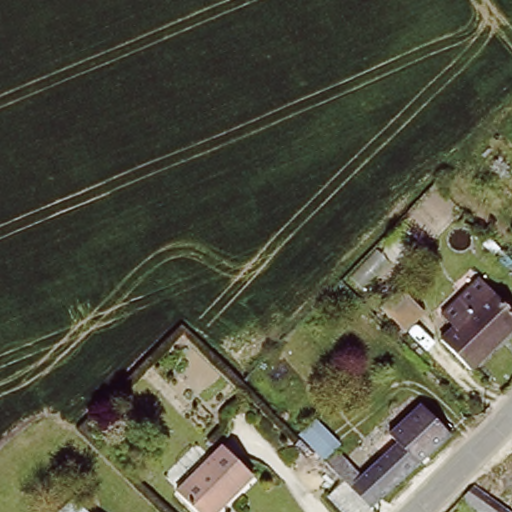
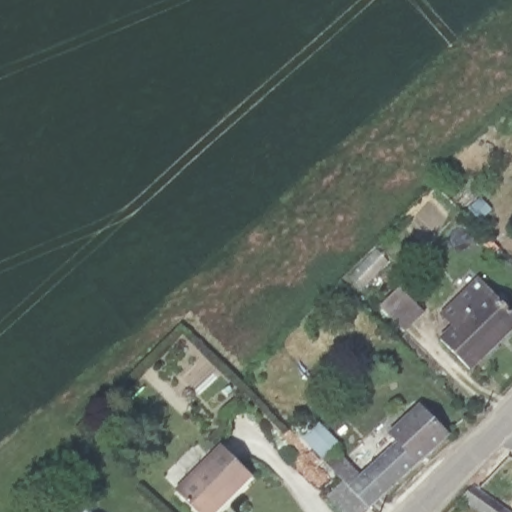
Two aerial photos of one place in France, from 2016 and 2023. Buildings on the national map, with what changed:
unchanged [(468,370),(438,340),(454,322),(439,308),(476,271),(512,307),(512,326),(468,370)]
unchanged [(409,331),(383,305),(404,285),(429,310),(409,331)]
unchanged [(346,483),(328,465),(303,440),(316,426),(341,452),(364,475),(384,455),(374,445),(419,400),(447,430),(373,510),(371,512),(348,512),(334,497),(346,483)]
unchanged [(216,512),(200,512),(178,489),(224,445),(254,476),(216,512)]
unchanged [(476,490),(506,512),(471,512),(462,505),(476,490)]
unchanged [(58,512),(73,497),(88,512),(58,512)]

